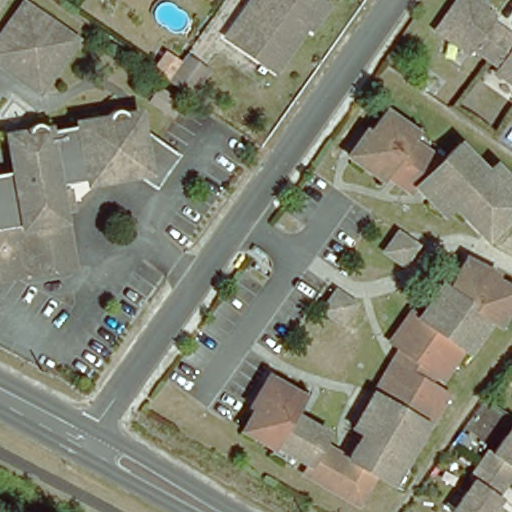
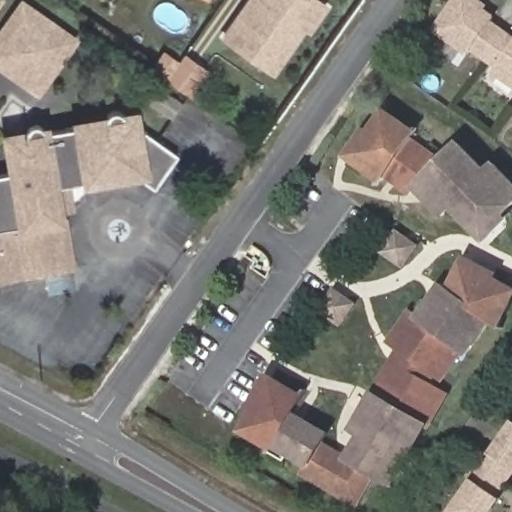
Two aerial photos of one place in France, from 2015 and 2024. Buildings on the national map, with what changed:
unchanged [(222,35),(246,0),(315,0),(322,5),(305,29),(300,25),(270,68),(257,59),(222,35)]
unchanged [(500,37),(481,64),(468,54),(464,60),(428,35),(452,0),(466,0),(470,4),(483,12),(480,16),(489,23),(486,27),(500,37)]
unchanged [(22,85),(0,68),(0,27),(13,9),(17,4),(24,8),(59,34),(69,41),(64,47),(37,84),(32,92),(22,85)]
unchanged [(492,72),(481,64),(500,37),(509,42),(512,39),(512,93),(489,77),(492,72)]
unchanged [(207,71),(192,97),(169,81),(154,70),(166,53),(181,64),(186,56),(207,71)]
unchanged [(444,215),(421,192),(416,187),(411,192),(388,169),(381,179),(363,166),(352,157),(358,149),(386,107),(417,129),(412,136),(443,157),(459,142),(487,171),(495,163),(512,181),(512,206),(481,236),(464,217),(453,206),(451,207),(444,215)]
unchanged [(42,273),(0,281),(0,177),(10,176),(7,160),(4,142),(20,139),(22,132),(26,130),(32,129),(37,131),(40,136),(101,125),(100,121),(101,117),(106,114),(111,115),(115,117),(118,131),(130,130),(171,158),(147,191),(126,176),(49,190),(49,195),(63,192),(66,214),(53,216),(59,251),(62,270),(42,273)]
unchanged [(412,245),(399,263),(381,250),(393,232),(412,245)]
unchanged [(411,311),(419,316),(437,291),(442,283),(450,289),(464,262),(509,285),(512,286),(512,301),(511,302),(500,324),(492,320),(468,352),(463,349),(442,378),(435,372),(389,341),(411,311)]
unchanged [(349,304),(335,322),(317,310),(330,291),(349,304)]
unchanged [(440,389),(448,393),(429,425),(427,423),(392,485),(373,473),(357,503),(304,472),(309,464),(274,444),(272,447),(242,430),(273,377),(304,395),(294,412),(328,432),(323,442),(349,457),(357,442),(362,433),(353,428),(369,400),(391,361),(440,389)]
unchanged [(472,464),(482,450),(487,453),(510,421),(512,422),(512,471),(502,486),(472,464)]
unchanged [(489,512),(447,512),(469,481),(463,477),(472,464),(502,486),(493,497),(497,501),(489,512)]

